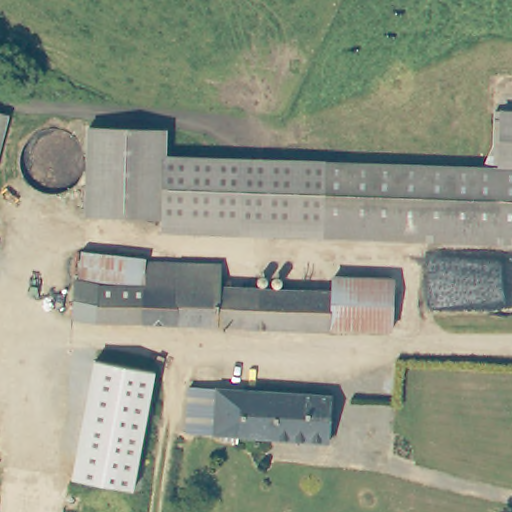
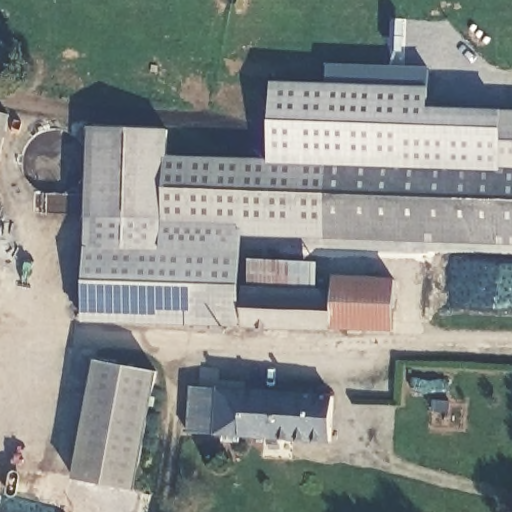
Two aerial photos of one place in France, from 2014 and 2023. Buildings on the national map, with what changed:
new [(492,167),(269,159),(271,80),(325,82),(325,63),(428,67),(428,86),(428,106),(494,110),(492,167)]
unchanged [(512,111),(512,229),(205,218),(180,218),(162,217),(164,158),(164,156),(188,157),(235,158),(492,167),(494,110),(512,111)]
unchanged [(8,118),(0,151),(0,116),(8,118)]
unchanged [(87,215),(90,126),(140,127),(165,128),(165,136),(164,156),(164,158),(162,217),(87,215)]
unchanged [(141,265),(141,271),(140,292),(109,291),(80,290),(81,263),(141,265)]
unchanged [(171,267),(218,267),(217,292),(288,294),(330,295),(329,324),(329,331),(329,333),(98,325),(73,320),(74,293),(109,294),(145,295),(146,271),(146,267),(171,267)]
unchanged [(329,324),(330,295),(331,281),(391,283),(391,333),(341,331),(329,331),(329,324)]
unchanged [(156,372),(133,489),(73,478),(95,360),(156,372)]
unchanged [(217,391),(214,437),(186,435),(189,389),(217,391)]
unchanged [(332,399),(329,445),(214,437),(217,391),(332,399)]

